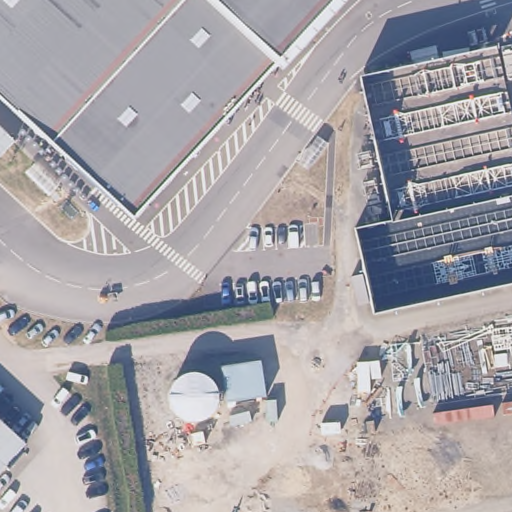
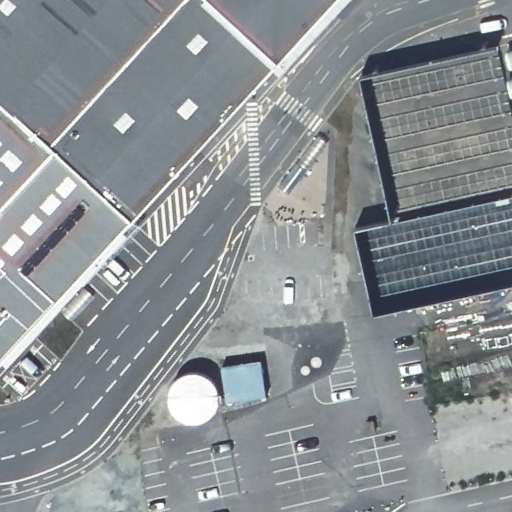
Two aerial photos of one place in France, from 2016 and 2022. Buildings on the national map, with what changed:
unchanged [(132,215),(0,94),(0,0),(334,0),(132,215)]
unchanged [(512,282),(374,310),(357,222),(395,215),(362,70),(505,37),(512,72),(512,282)]
new [(132,215),(125,226),(131,232),(10,364),(5,359),(0,364),(0,94),(132,215)]
unchanged [(271,394),(231,400),(226,364),(266,359),(271,394)]
demolished [(71,409),(50,433),(25,409),(45,388),(71,409)]
demolished [(29,445),(0,476),(0,419),(29,445)]

